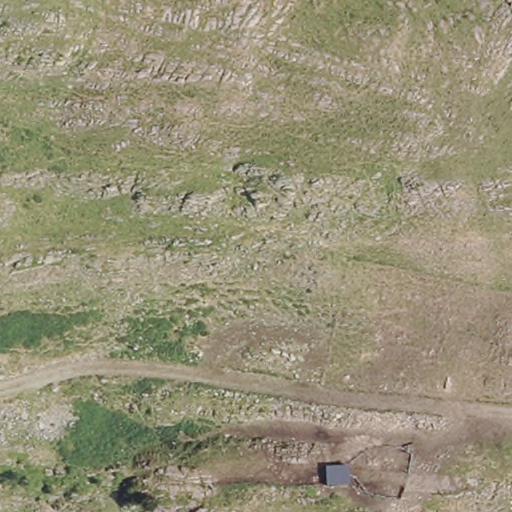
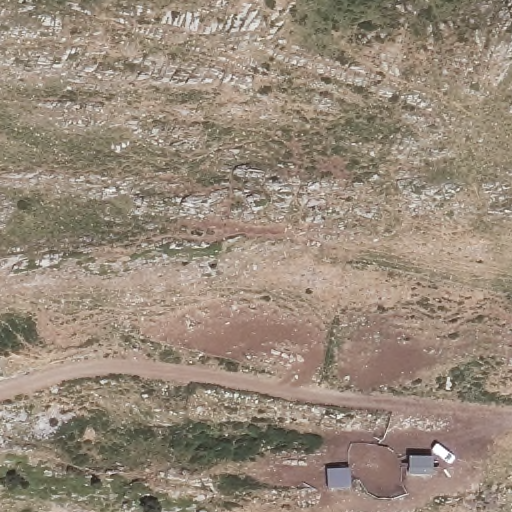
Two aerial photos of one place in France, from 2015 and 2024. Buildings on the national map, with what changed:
unchanged [(326,468),(350,467),(350,487),(327,488),(326,468)]

